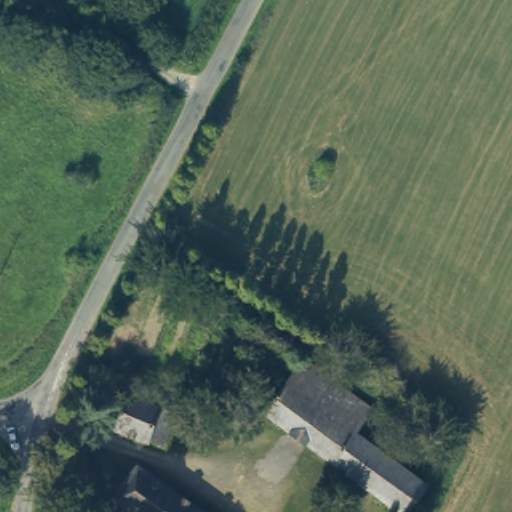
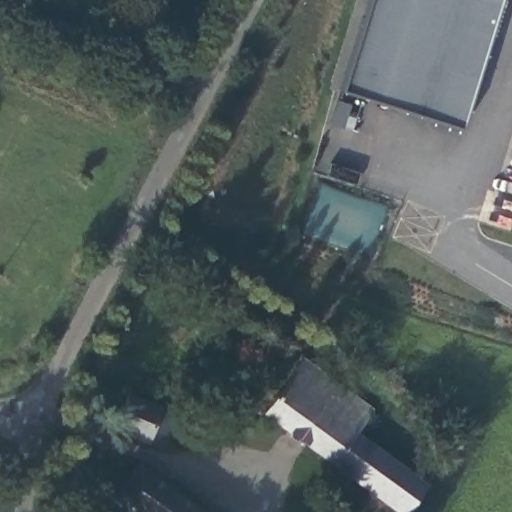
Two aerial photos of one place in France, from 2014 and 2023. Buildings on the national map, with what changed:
new [(367,0),(499,0),(458,129),(339,93),(367,0)]
unchanged [(299,359),(368,410),(353,432),(425,484),(405,512),(398,512),(260,413),(299,359)]
unchanged [(175,409),(163,440),(149,435),(147,441),(111,427),(117,412),(108,412),(103,406),(105,397),(110,393),(117,394),(122,399),(126,390),(175,409)]
unchanged [(201,512),(133,512),(116,499),(138,467),(201,512)]

